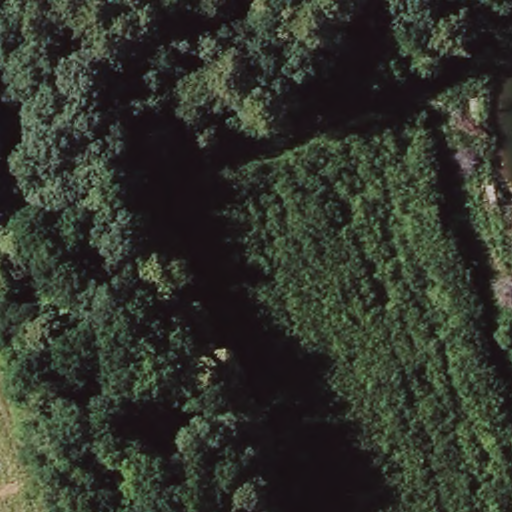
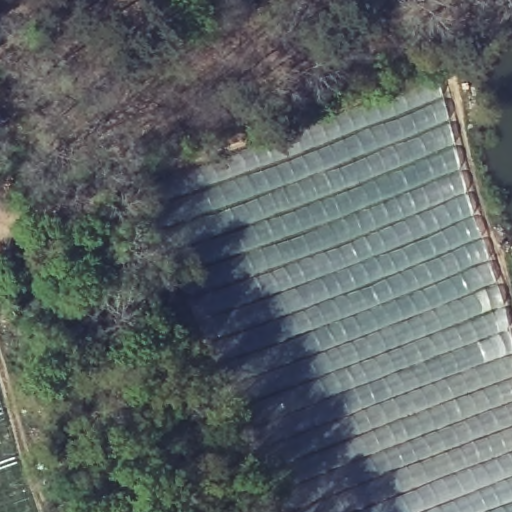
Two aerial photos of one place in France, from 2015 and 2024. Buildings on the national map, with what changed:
new [(249,223),(270,214),(268,208),(259,211),(255,203),(250,205),(247,200),(290,180),(286,170),(275,174),(275,171),(252,177),(250,173),(310,149),(358,127),(354,119),(349,121),(347,116),(337,120),(335,116),(436,78),(444,104),(446,111),(470,202),(504,302),(510,331),(512,337),(512,512),(393,512),(387,497),(398,493),(387,475),(380,478),(347,415),(342,417),(337,407),(330,409),(292,338),(285,341),(262,299),(244,249),(257,244),(249,223)]
unchanged [(3,307),(30,296),(47,336),(20,347),(3,307)]

